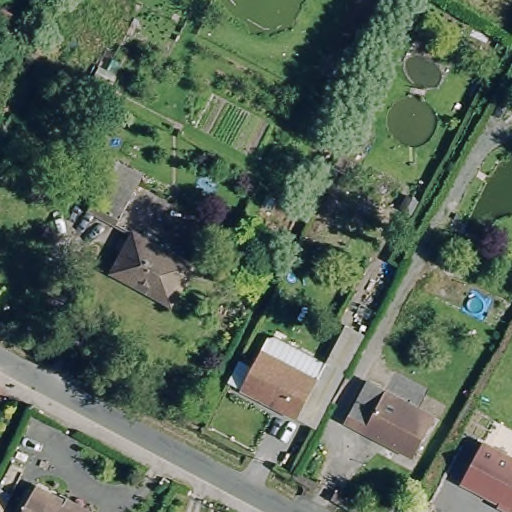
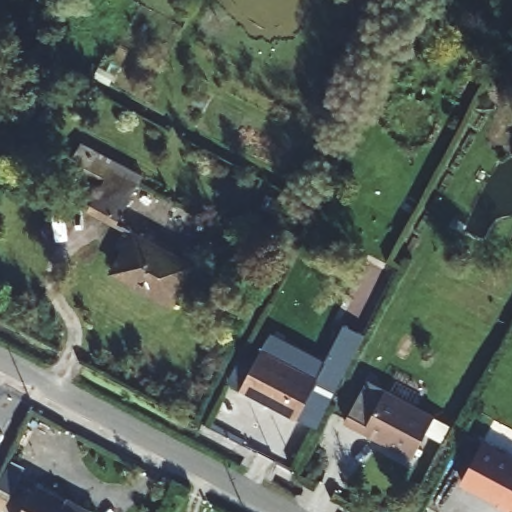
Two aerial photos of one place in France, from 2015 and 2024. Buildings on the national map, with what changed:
unchanged [(88,210),(101,181),(79,169),(90,152),(144,183),(120,226),(88,210)]
unchanged [(197,270),(180,304),(118,274),(137,238),(197,270)]
unchanged [(347,327),(367,337),(316,430),(246,392),(259,368),(251,364),(259,351),(269,356),(277,340),(312,358),(303,375),(317,383),(347,327)]
unchanged [(437,418),(415,459),(345,422),(365,381),(437,418)]
unchanged [(507,504),(461,479),(479,443),(512,462),(512,512),(505,508),(507,504)]
unchanged [(72,512),(27,512),(37,493),(72,512)]

